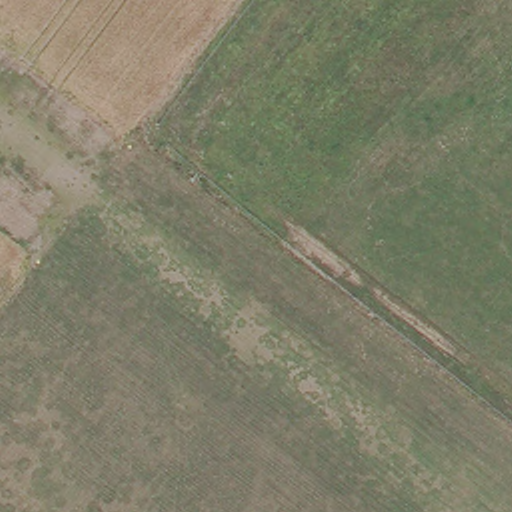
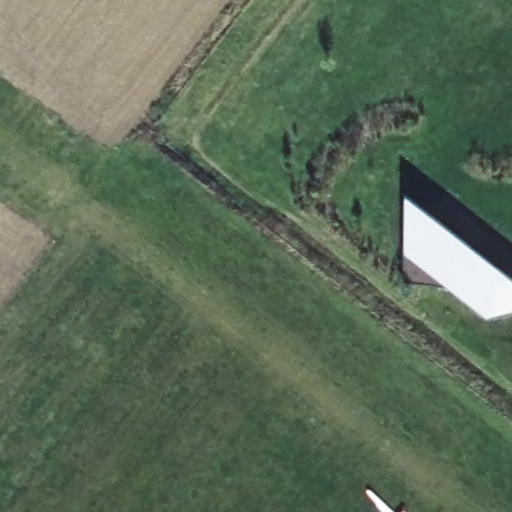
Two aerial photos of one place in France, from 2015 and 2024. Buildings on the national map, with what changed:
new [(403,255),(404,198),(512,282),(512,312),(487,319),(444,287),(403,282),(403,255)]

